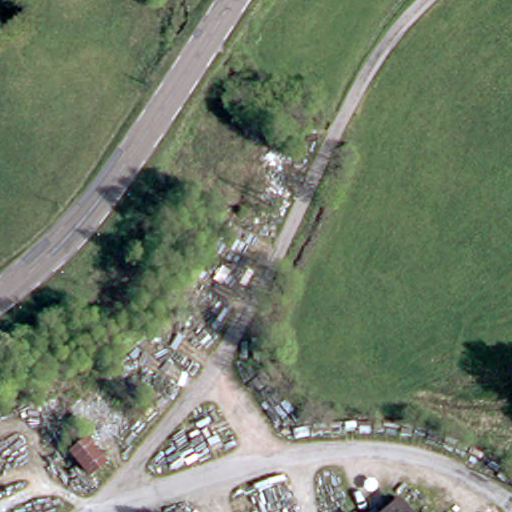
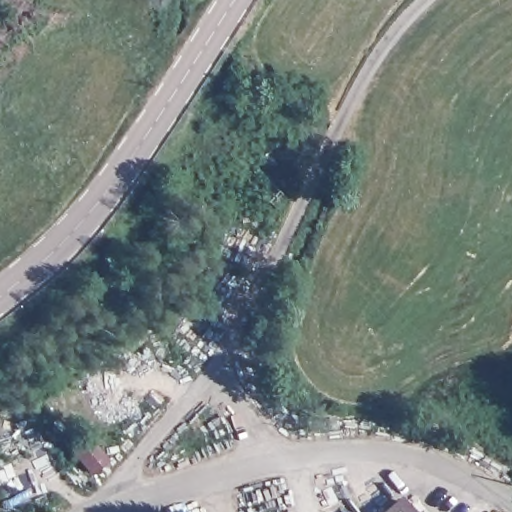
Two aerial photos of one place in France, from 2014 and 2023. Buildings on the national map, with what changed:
unchanged [(398,512),(405,507),(409,512),(398,512)]

